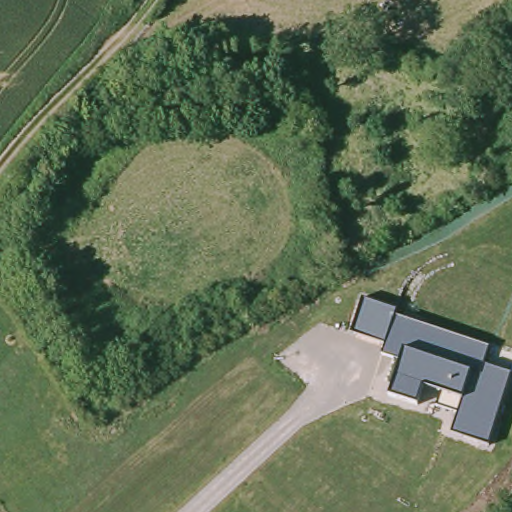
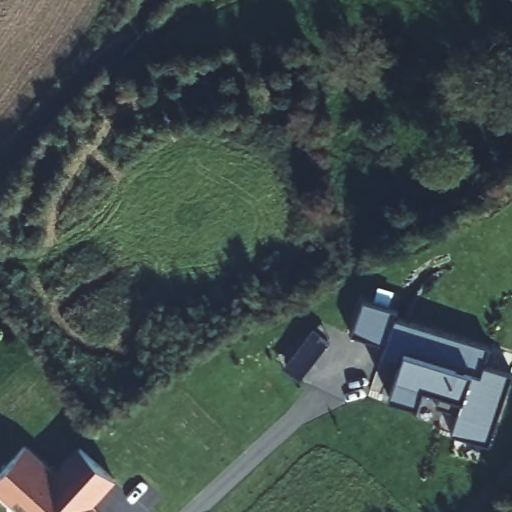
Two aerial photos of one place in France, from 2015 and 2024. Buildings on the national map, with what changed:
unchanged [(398,310),(395,318),(489,347),(483,365),(512,375),(489,443),(451,431),(457,413),(437,406),(442,391),(424,385),(417,404),(390,395),(400,361),(383,354),(385,344),(350,332),(362,297),(398,310)]
new [(97,512),(24,512),(0,490),(0,471),(24,445),(55,474),(80,448),(113,479),(90,505),(97,512)]

